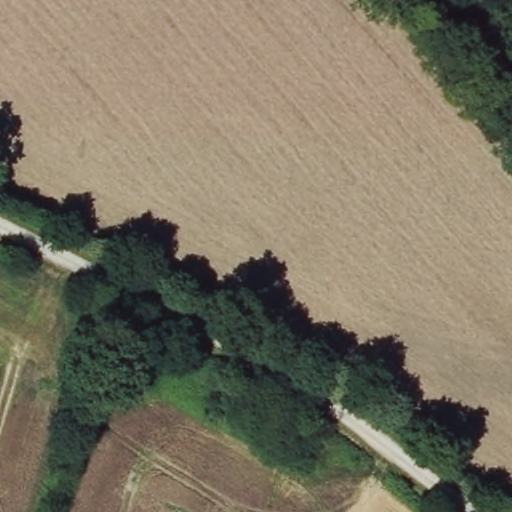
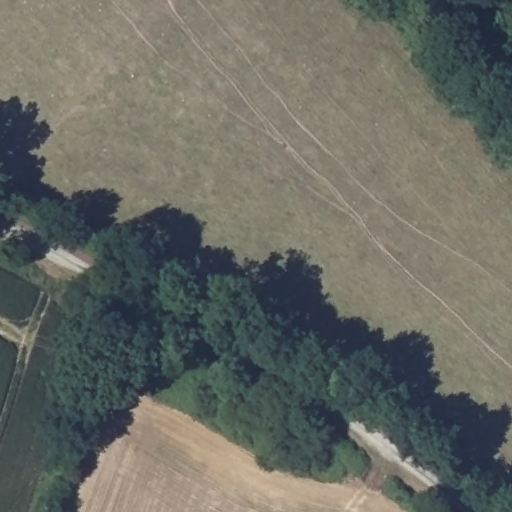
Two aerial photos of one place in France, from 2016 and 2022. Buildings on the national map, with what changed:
[]

